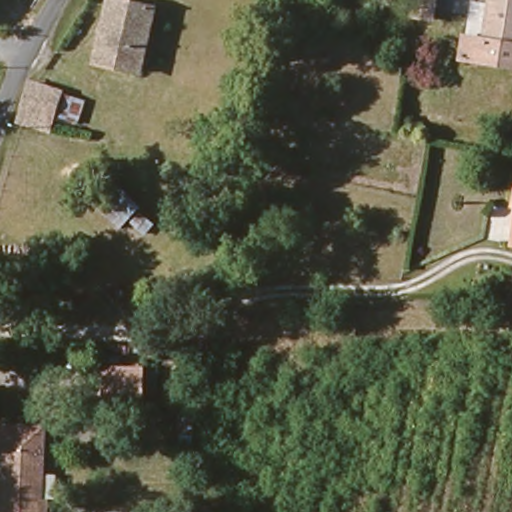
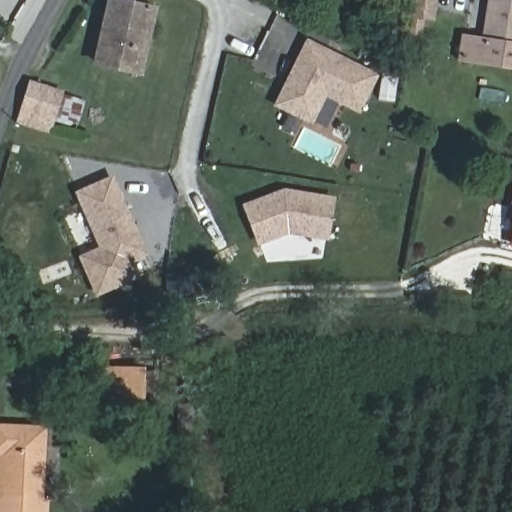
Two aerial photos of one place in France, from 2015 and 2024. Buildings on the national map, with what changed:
unchanged [(487,39),(493,0),(512,0),(512,67),(485,63),(462,60),(465,35),(487,39)]
unchanged [(101,61),(115,2),(157,12),(143,72),(101,61)]
new [(303,56),(310,41),(378,74),(361,108),(327,91),(314,119),(280,102),(295,73),(303,56)]
unchanged [(36,84),(70,91),(62,128),(27,122),(36,84)]
new [(143,252),(128,258),(135,275),(97,291),(82,256),(102,248),(79,192),(111,178),(131,223),(143,252)]
demolished [(129,221),(121,228),(101,211),(124,184),(159,218),(145,235),(129,221)]
new [(287,189),(336,197),(330,235),(292,229),(263,240),(249,204),(287,189)]
unchanged [(145,309),(146,331),(95,331),(95,312),(145,309)]
unchanged [(105,398),(107,369),(144,369),(145,398),(105,398)]
unchanged [(2,425),(52,430),(44,512),(0,512),(0,449),(2,425)]

